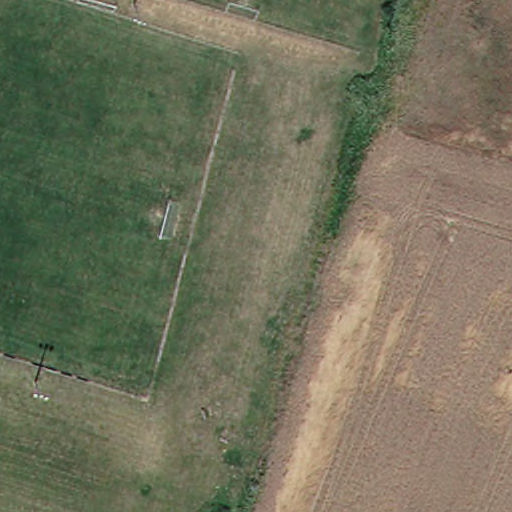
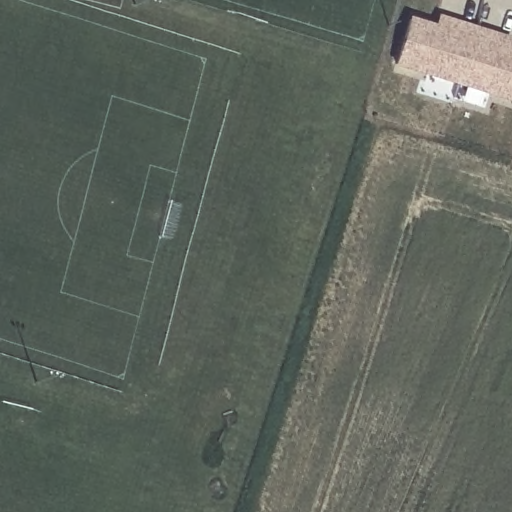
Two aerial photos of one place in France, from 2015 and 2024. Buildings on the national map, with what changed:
new [(434,28),(437,18),(511,41),(509,50),(512,51),(512,102),(393,65),(407,19),(434,28)]

